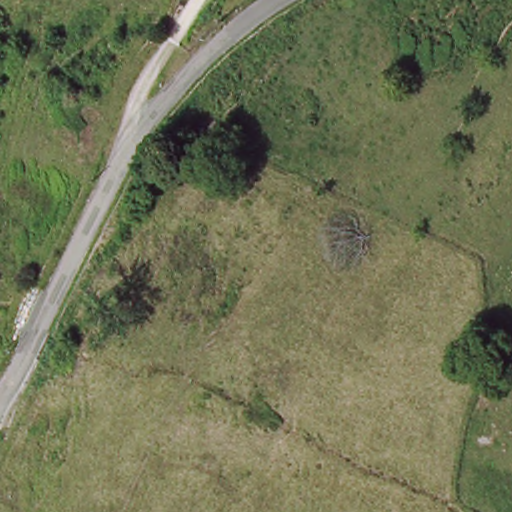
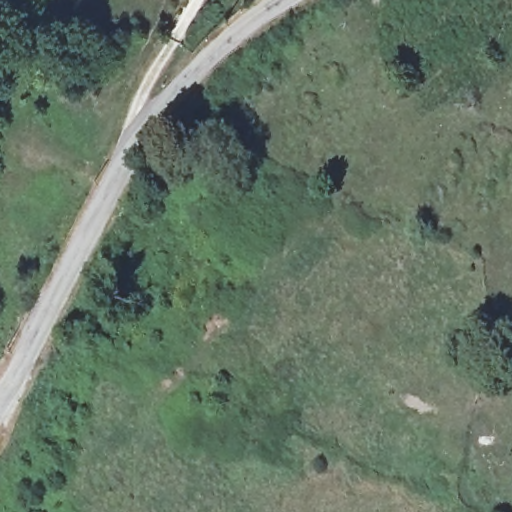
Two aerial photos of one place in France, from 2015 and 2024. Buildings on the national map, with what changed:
[]

